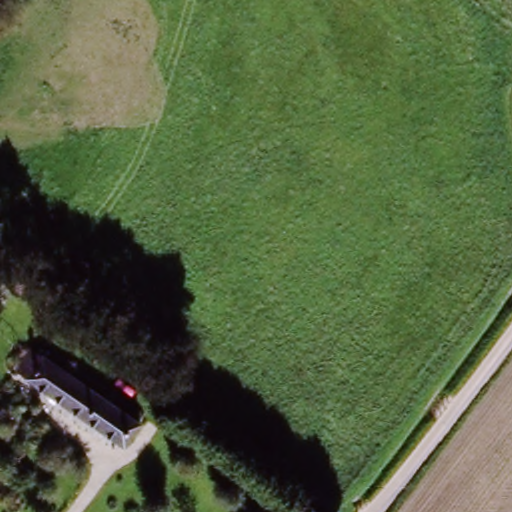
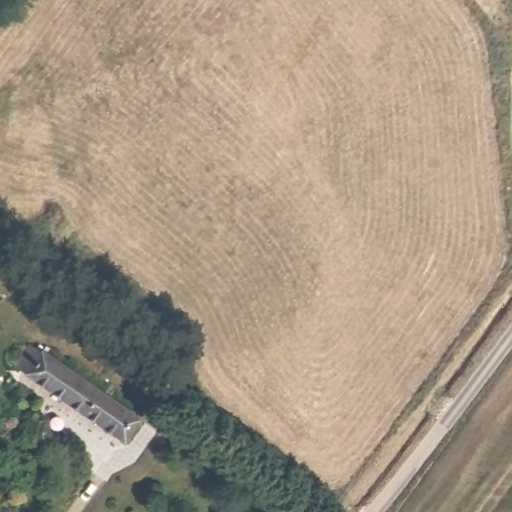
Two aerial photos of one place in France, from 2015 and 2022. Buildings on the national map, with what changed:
unchanged [(16,372),(36,347),(142,423),(126,446),(16,372)]
unchanged [(286,512),(255,512),(275,497),(288,511),(286,512)]

